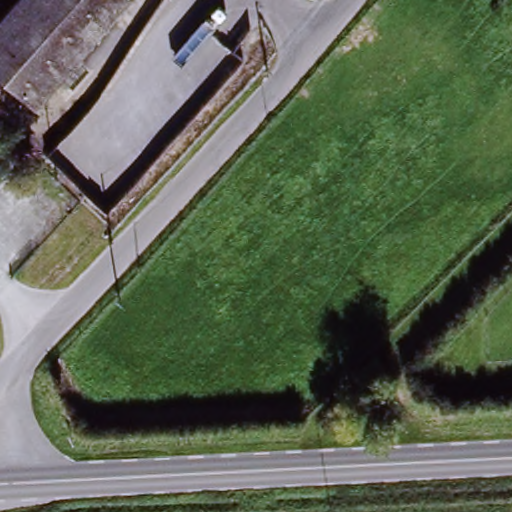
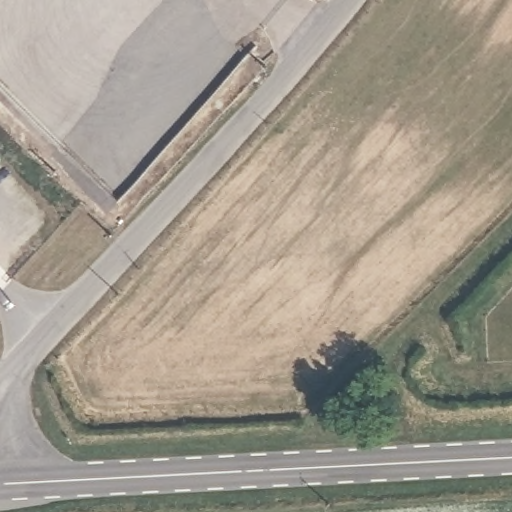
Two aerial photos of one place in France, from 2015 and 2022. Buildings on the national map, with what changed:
demolished [(0,81),(0,8),(7,0),(119,0),(24,103),(0,81)]

